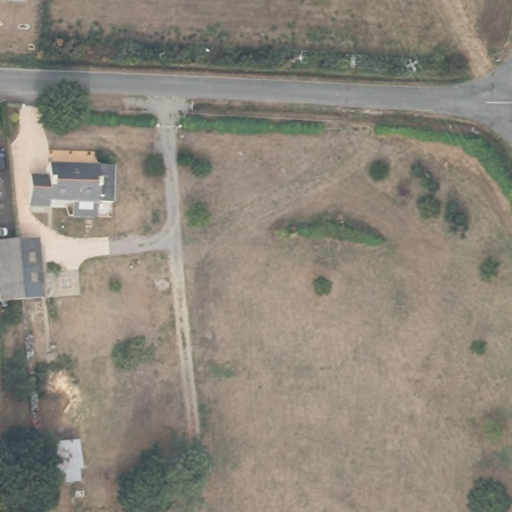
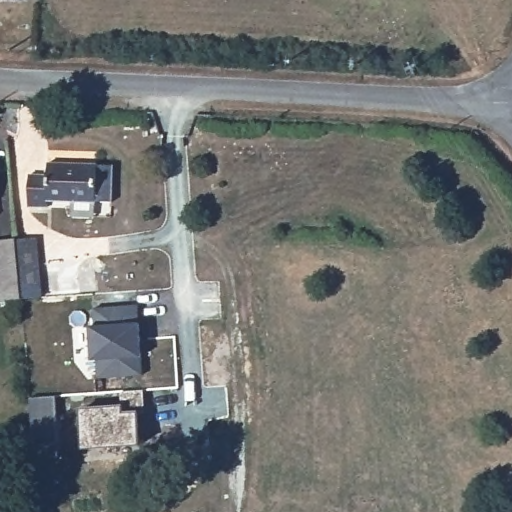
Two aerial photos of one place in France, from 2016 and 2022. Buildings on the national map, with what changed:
unchanged [(65,222),(65,203),(44,203),(44,208),(25,208),(24,174),(41,174),(41,161),(109,161),(111,201),(94,201),(94,203),(94,222),(65,222)]
unchanged [(0,303),(0,242),(16,240),(32,239),(35,271),(37,299),(21,300),(0,303)]
new [(139,304),(140,323),(142,357),(144,376),(98,379),(96,360),(91,360),(88,324),(94,324),(92,307),(139,304)]
new [(143,390),(145,414),(139,414),(141,446),(114,449),(114,447),(83,449),(80,407),(121,404),(120,391),(143,390)]
demolished [(83,449),(84,474),(52,475),(51,450),(83,449)]

